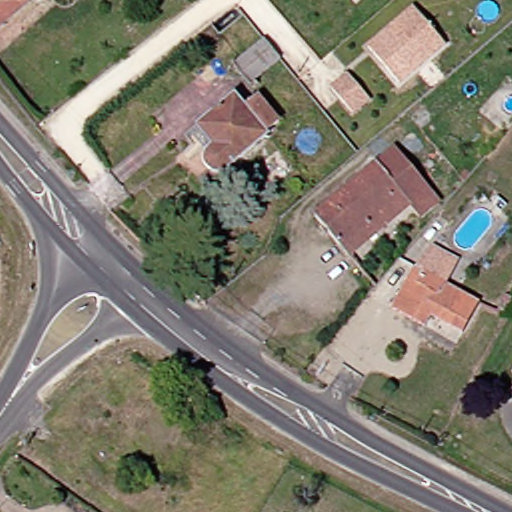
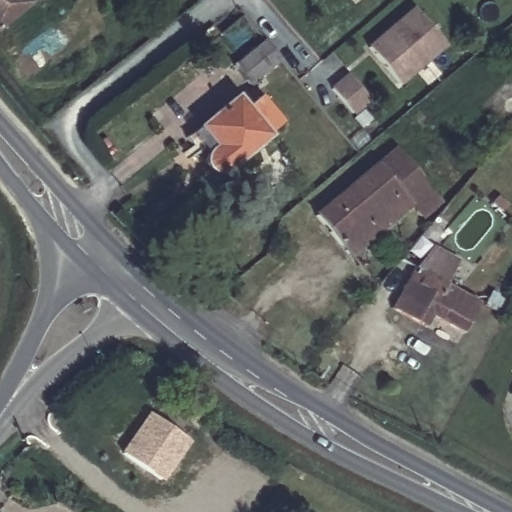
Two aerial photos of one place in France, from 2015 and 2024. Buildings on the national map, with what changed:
unchanged [(30,0),(0,24),(0,0),(30,0)]
unchanged [(371,45),(416,5),(447,41),(402,81),(371,45)]
unchanged [(250,86),(230,66),(263,37),(281,58),(250,86)]
unchanged [(373,97),(356,111),(335,86),(351,72),(373,97)]
unchanged [(249,116),(266,99),(285,119),(267,136),(271,139),(230,177),(222,179),(212,169),(210,164),(210,160),(212,155),(215,151),(204,141),(191,154),(179,141),(231,96),(249,116)]
unchanged [(443,194),(423,210),(413,199),(354,251),(318,211),(398,141),(443,194)]
unchanged [(465,330),(437,315),(430,327),(393,306),(410,277),(421,260),(457,279),(487,296),(465,330)]
new [(164,482),(121,452),(149,410),(192,440),(164,482)]

